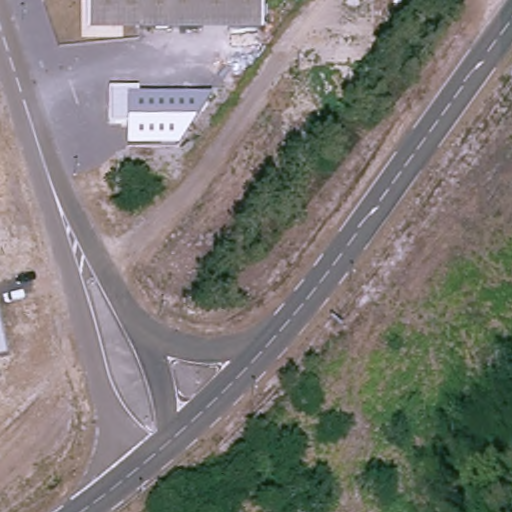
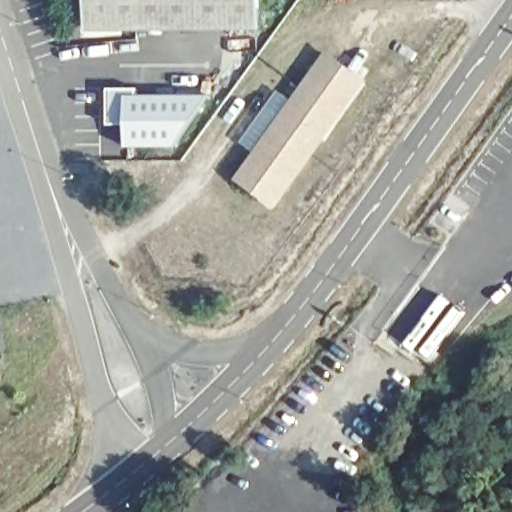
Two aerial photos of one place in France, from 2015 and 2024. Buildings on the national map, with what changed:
unchanged [(79,0),(254,0),(254,28),(129,29),(78,28),(78,1),(79,0)]
new [(235,178),(327,51),(367,79),(276,208),(235,178)]
unchanged [(109,89),(138,89),(138,95),(209,95),(180,149),(126,149),(126,128),(110,125),(109,89)]
unchanged [(0,359),(0,330),(6,358),(0,359)]

